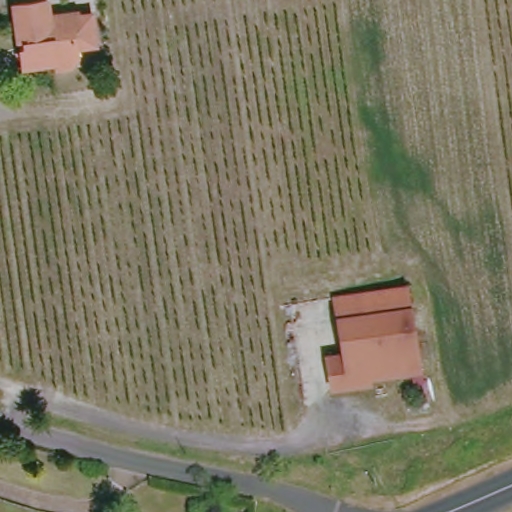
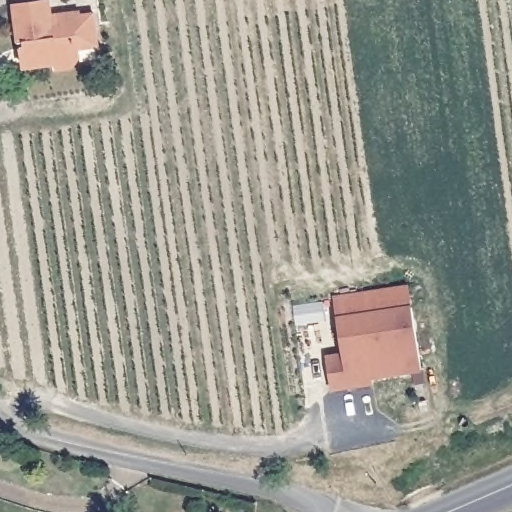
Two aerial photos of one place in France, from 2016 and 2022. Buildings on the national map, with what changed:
unchanged [(45,19),(56,18),(55,15),(73,12),(73,16),(86,14),(91,47),(71,51),(72,59),(65,67),(50,70),(50,62),(18,67),(15,49),(21,49),(20,40),(11,41),(6,5),(42,1),(45,19)]
unchanged [(422,369),(372,377),(372,382),(333,388),(328,357),(344,354),(339,316),(361,312),(413,305),(422,369)]

